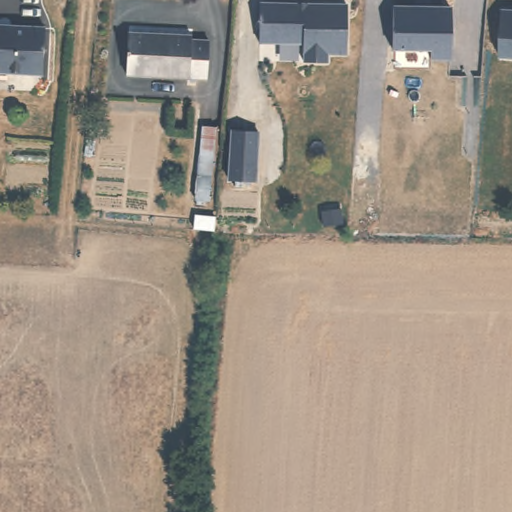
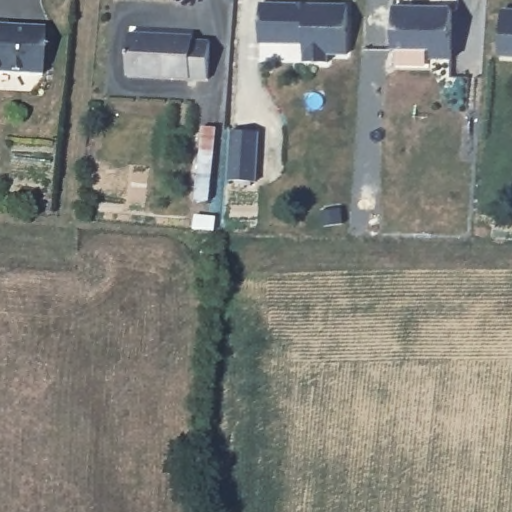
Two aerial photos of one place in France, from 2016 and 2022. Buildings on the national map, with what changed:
unchanged [(451,6),(450,58),(431,57),(431,48),(393,47),(394,5),(451,6)]
unchanged [(348,9),(347,58),(328,57),(328,66),(305,66),(305,47),(260,46),(261,7),(348,9)]
unchanged [(502,13),(512,14),(512,60),(500,59),(502,13)]
unchanged [(49,33),(44,80),(0,75),(0,28),(49,33)]
unchanged [(194,42),(194,47),(211,48),(209,85),(129,79),(130,38),(194,42)]
unchanged [(219,134),(216,183),(198,181),(202,133),(219,134)]
unchanged [(231,181),(234,133),(260,134),(258,183),(231,181)]

